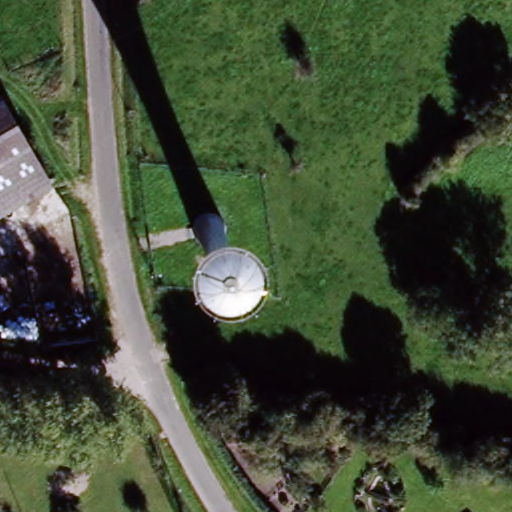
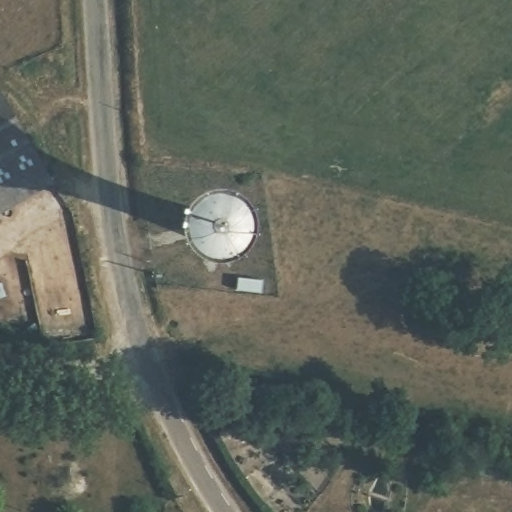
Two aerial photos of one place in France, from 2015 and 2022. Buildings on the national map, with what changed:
unchanged [(0,220),(0,99),(1,98),(53,190),(0,220)]

